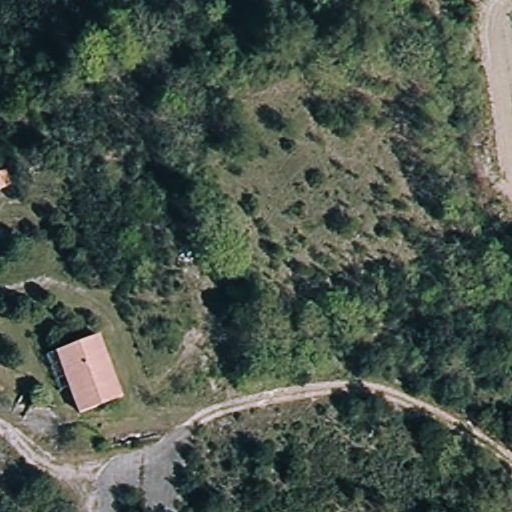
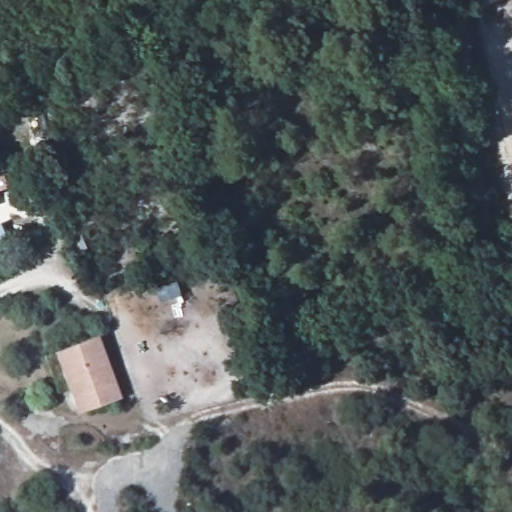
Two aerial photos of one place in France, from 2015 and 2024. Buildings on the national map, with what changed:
unchanged [(52,397),(38,361),(96,338),(120,401),(79,415),(69,392),(52,397)]

